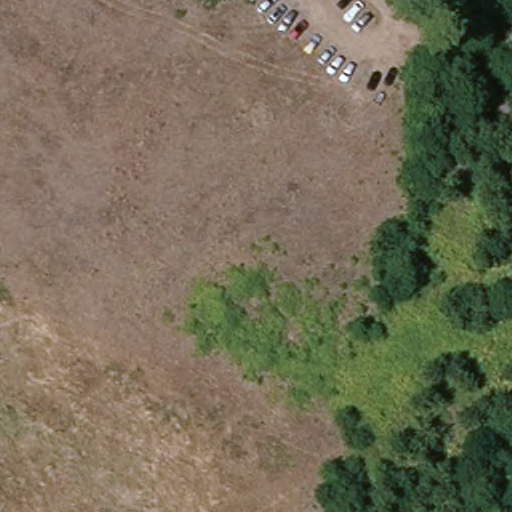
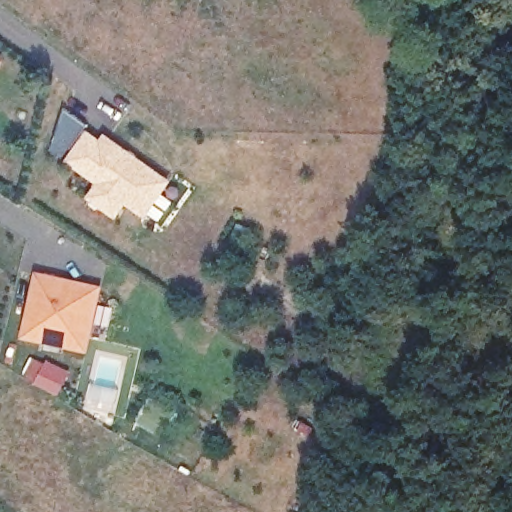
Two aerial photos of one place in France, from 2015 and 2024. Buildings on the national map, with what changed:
new [(8,63),(0,74),(0,57),(8,63)]
new [(128,207),(118,220),(88,200),(98,186),(66,163),(89,133),(102,141),(107,136),(173,182),(146,219),(128,207)]
new [(105,286),(91,355),(22,339),(38,272),(105,286)]

